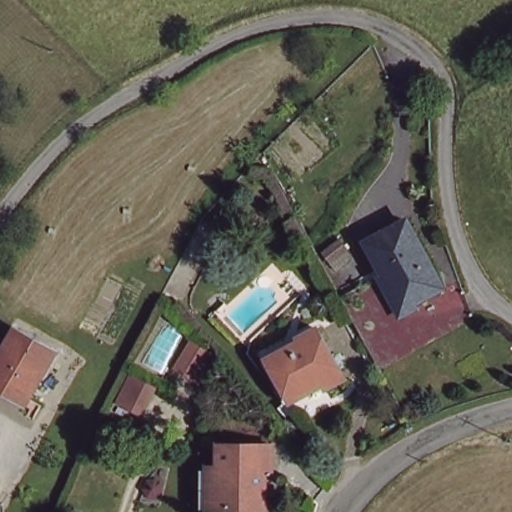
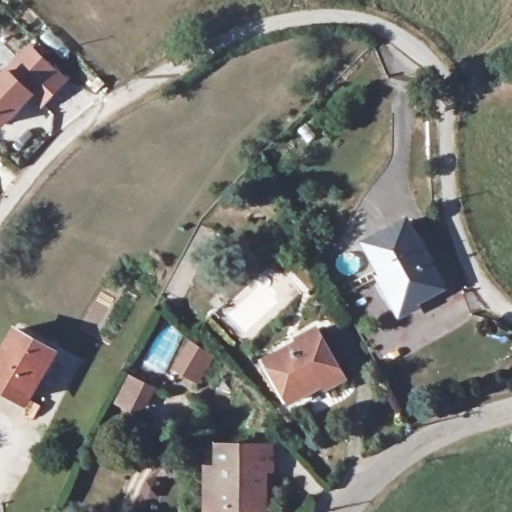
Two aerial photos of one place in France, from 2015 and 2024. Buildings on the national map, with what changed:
new [(32,99),(3,129),(0,126),(0,75),(30,44),(69,80),(42,109),(32,99)]
unchanged [(389,278),(369,242),(408,220),(443,286),(412,303),(404,307),(389,278)]
unchanged [(348,248),(331,261),(324,252),(340,239),(348,248)]
unchanged [(326,388),(323,384),(291,401),(274,369),(268,358),(299,338),(319,328),(346,377),(326,388)]
unchanged [(23,404),(0,390),(0,354),(12,334),(52,356),(23,404)]
unchanged [(149,389),(136,413),(118,403),(131,379),(149,389)]
unchanged [(208,464),(221,464),(221,445),(274,447),(273,470),(266,470),(265,507),(221,507),(208,507),(208,464)]

